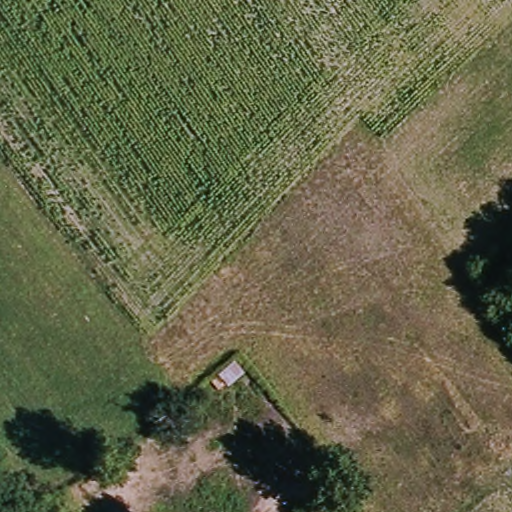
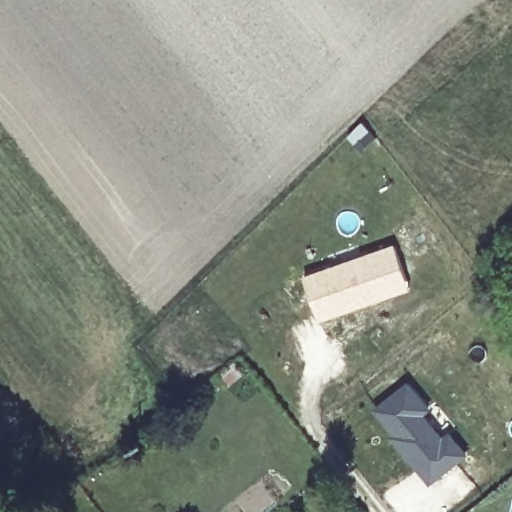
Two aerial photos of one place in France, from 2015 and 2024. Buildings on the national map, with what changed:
new [(319,309),(308,275),(334,266),(364,256),(397,244),(409,278),(411,286),(382,297),(346,308),(322,316),(319,309)]
new [(408,379),(432,409),(427,413),(444,434),(450,430),(468,454),(431,483),(397,440),(373,407),(408,379)]

